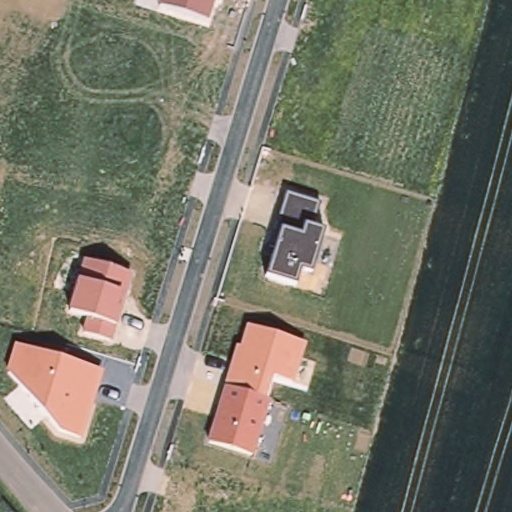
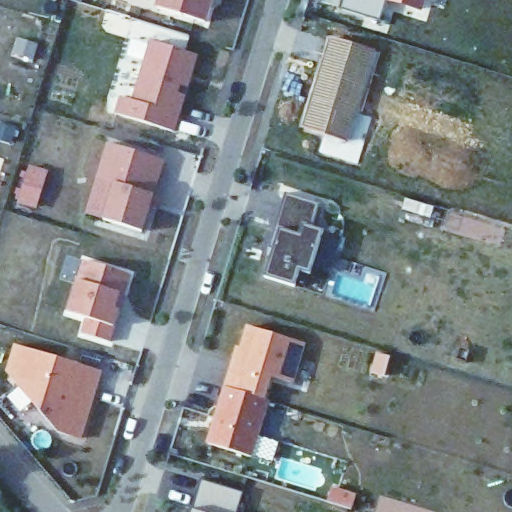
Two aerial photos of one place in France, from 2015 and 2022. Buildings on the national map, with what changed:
unchanged [(155,6),(157,0),(213,0),(207,23),(155,6)]
new [(340,7),(342,0),(387,0),(385,9),(382,19),(381,20),(340,7)]
new [(397,0),(423,0),(420,8),(397,0)]
new [(132,93),(150,33),(195,46),(189,65),(186,75),(170,123),(115,106),(120,89),(132,93)]
new [(375,52),(347,141),(302,126),(328,37),(375,52)]
new [(107,135),(162,151),(140,222),(102,211),(112,176),(95,171),(107,135)]
new [(47,170),(38,209),(17,204),(28,166),(47,170)]
unchanged [(312,228),(323,231),(310,273),(298,270),(295,284),(263,276),(277,228),(288,192),(320,203),(312,228)]
unchanged [(116,327),(111,345),(81,336),(87,316),(67,310),(76,277),(83,260),(133,275),(116,327)]
unchanged [(295,383),(272,377),(264,399),(271,401),(255,458),(205,442),(235,345),(240,346),(247,326),(305,343),(295,383)]
unchanged [(82,439),(58,434),(6,367),(14,344),(101,372),(82,439)]
new [(242,491),(237,512),(191,512),(200,479),(242,491)]
new [(355,494),(352,508),(327,500),(330,487),(355,494)]

